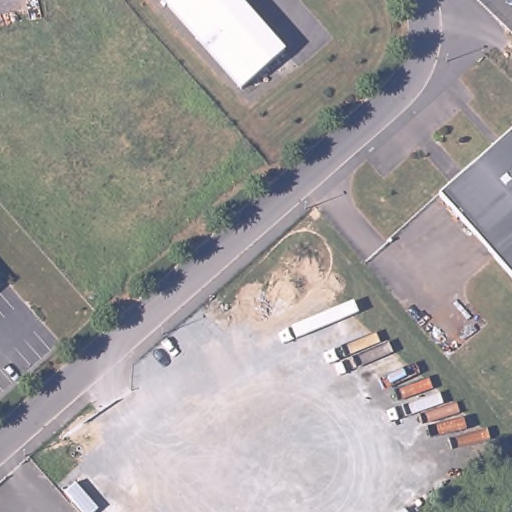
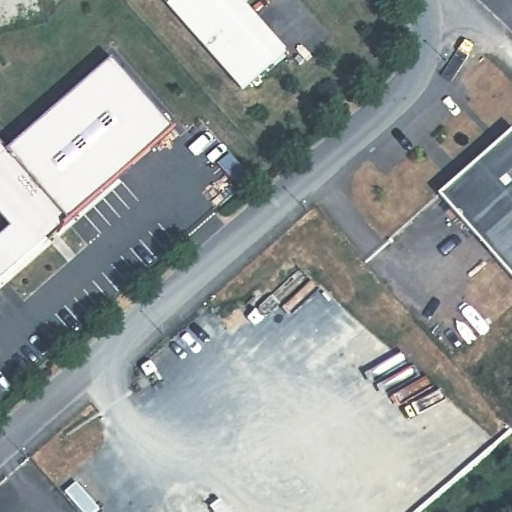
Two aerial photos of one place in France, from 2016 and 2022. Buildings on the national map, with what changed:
unchanged [(244,4),(288,53),(242,91),(168,7),(162,0),(248,0),(244,4)]
new [(7,150),(112,59),(172,130),(66,222),(0,280),(0,233),(7,227),(0,218),(0,142),(7,150)]
unchanged [(512,278),(440,196),(438,194),(512,129),(512,278)]

